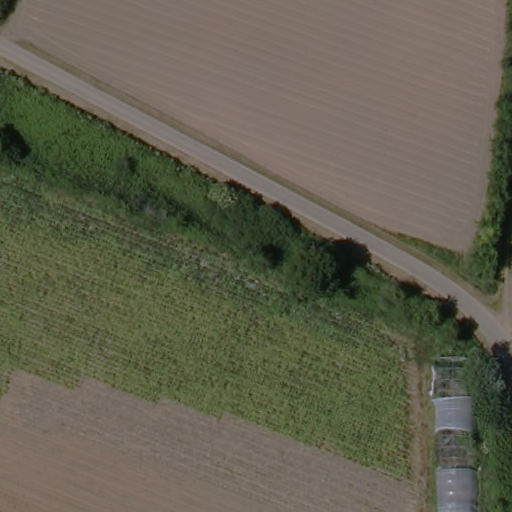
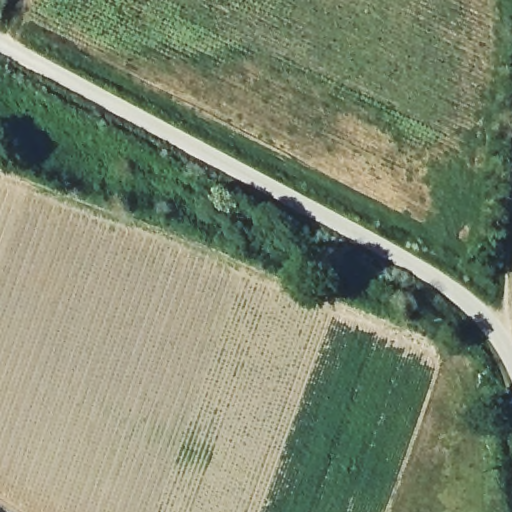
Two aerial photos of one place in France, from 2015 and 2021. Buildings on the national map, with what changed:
demolished [(474,356),(478,512),(441,512),(441,358),(474,356)]

